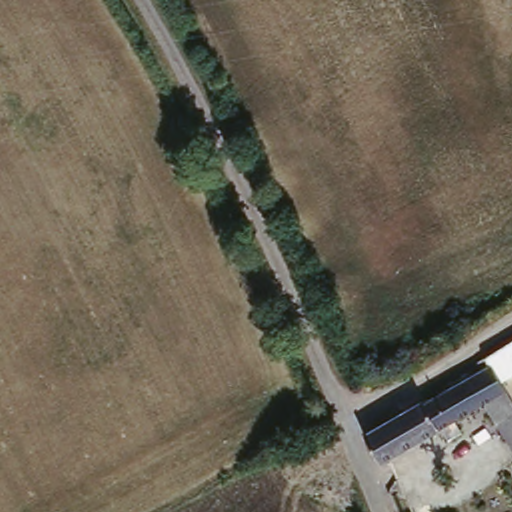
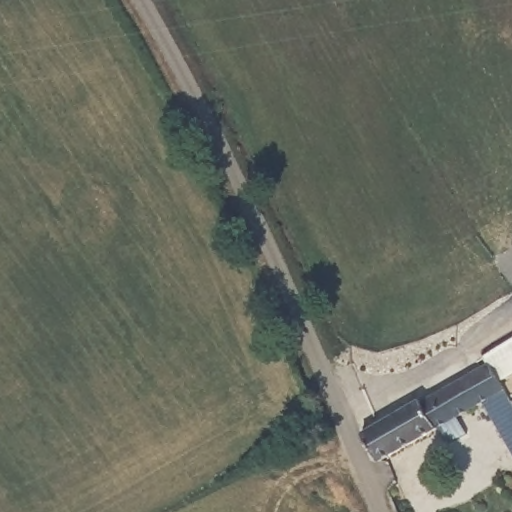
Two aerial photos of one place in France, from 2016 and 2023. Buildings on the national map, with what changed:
unchanged [(503,388),(488,364),(480,352),(512,334),(512,383),(503,388)]
unchanged [(421,395),(424,399),(488,364),(503,388),(502,388),(473,404),(377,457),(363,429),(421,395)]
unchanged [(502,388),(504,392),(512,407),(512,461),(479,404),(475,407),(473,404),(502,388)]

